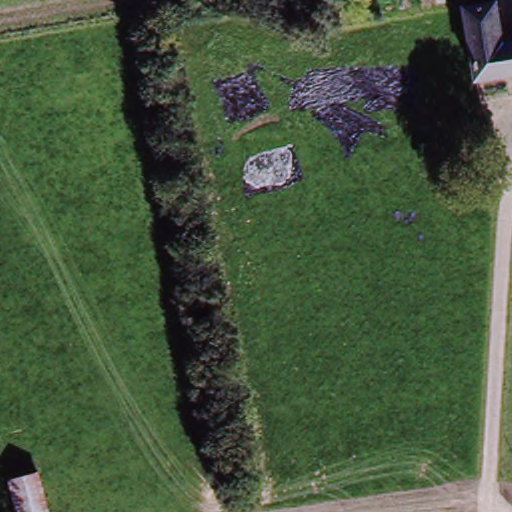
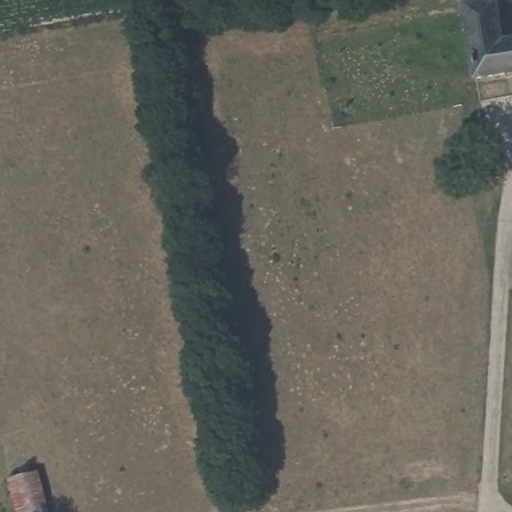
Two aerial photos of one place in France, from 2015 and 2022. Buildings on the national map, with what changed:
unchanged [(500,4),(508,35),(512,34),(512,78),(482,84),(466,10),(500,4)]
unchanged [(46,512),(17,512),(10,478),(37,473),(46,512)]

